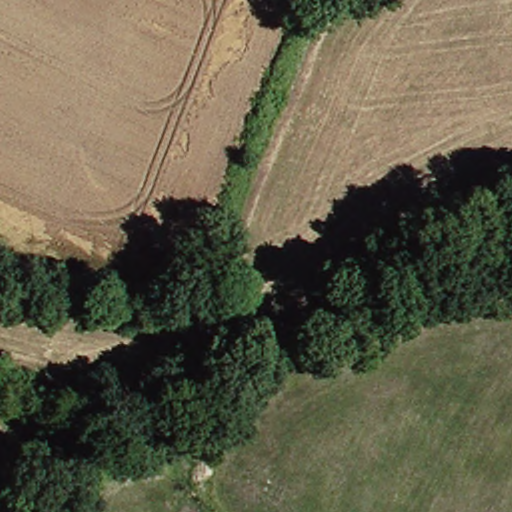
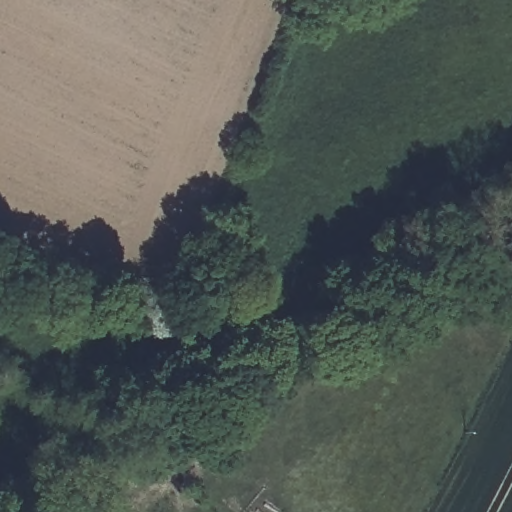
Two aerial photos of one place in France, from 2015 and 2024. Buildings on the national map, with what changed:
[]

